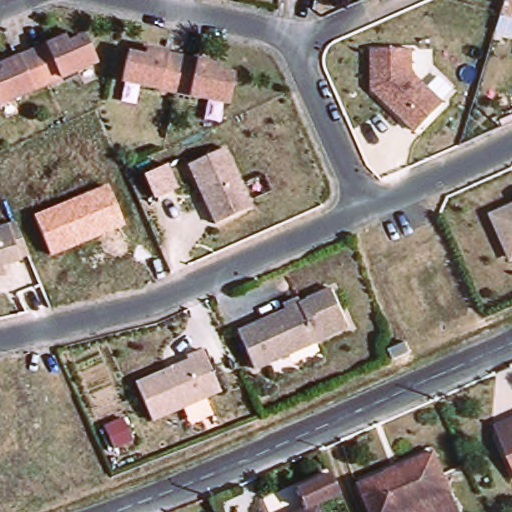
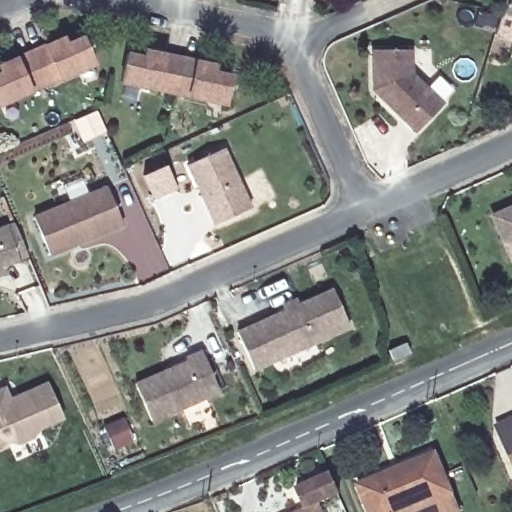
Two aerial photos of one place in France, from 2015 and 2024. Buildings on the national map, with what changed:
unchanged [(3,113),(0,107),(0,82),(7,79),(5,73),(70,45),(73,51),(89,44),(101,71),(3,113)]
unchanged [(373,90),(373,50),(416,50),(416,74),(446,103),(417,132),(373,90)]
unchanged [(216,75),(234,78),(228,107),(123,85),(129,56),(146,60),(147,53),(218,68),(216,75)]
unchanged [(253,208),(217,223),(190,163),(226,147),(253,208)]
unchanged [(178,186),(155,196),(145,173),(168,163),(178,186)]
unchanged [(108,185),(124,226),(51,256),(35,217),(108,185)]
unchanged [(495,210),(512,203),(512,248),(495,210)]
unchanged [(0,230),(15,226),(27,256),(18,259),(18,262),(1,266),(4,275),(0,276),(0,230)]
unchanged [(352,327),(256,370),(239,332),(288,311),(285,305),(298,299),(300,305),(335,290),(352,327)]
unchanged [(419,342),(423,352),(406,360),(404,354),(401,350),(405,348),(419,342)]
unchanged [(153,420),(136,383),(189,361),(187,358),(203,351),(221,391),(153,420)]
new [(11,407),(21,403),(18,397),(48,383),(62,417),(39,427),(31,437),(19,442),(7,441),(0,444),(0,391),(4,389),(11,407)]
unchanged [(507,438),(503,430),(512,426),(512,449),(507,438)]
unchanged [(379,512),(368,488),(448,450),(472,512),(379,512)]
unchanged [(315,502),(320,512),(295,512),(302,509),(292,490),(326,473),(336,492),(315,502)]

